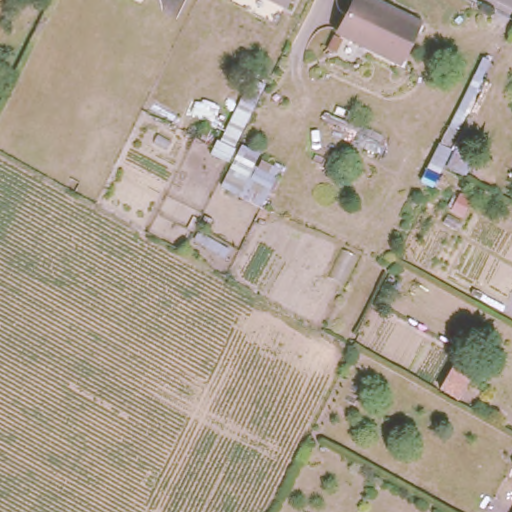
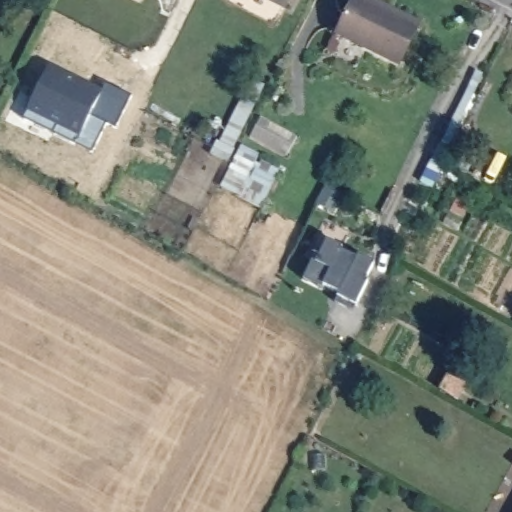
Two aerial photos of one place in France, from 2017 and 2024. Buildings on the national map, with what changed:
unchanged [(284,3),(278,0),(286,0),(284,3)]
unchanged [(423,19),(420,25),(403,59),(341,29),(356,0),(387,0),(423,19)]
new [(101,92),(105,85),(131,97),(116,130),(106,125),(92,154),(23,120),(27,113),(26,112),(48,66),(101,92)]
unchanged [(215,141),(247,71),(265,78),(230,149),(215,141)]
unchanged [(433,140),(440,144),(468,90),(474,94),(438,167),(424,160),(433,140)]
unchanged [(242,140),(286,165),(260,208),(217,184),(242,140)]
unchanged [(455,152),(471,161),(465,175),(447,166),(455,152)]
new [(373,263),(365,281),(367,282),(352,311),(334,302),(338,293),(322,286),(321,288),(302,279),(311,260),(315,262),(325,240),(373,263)]
unchanged [(453,350),(472,360),(450,396),(433,384),(453,350)]

